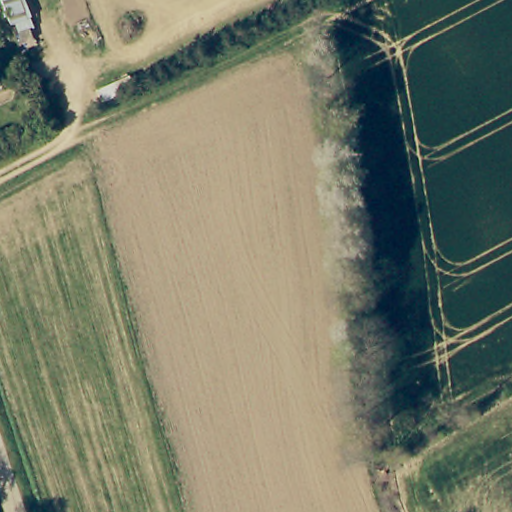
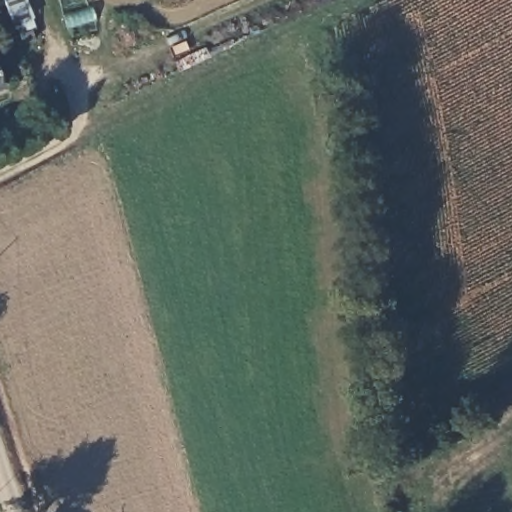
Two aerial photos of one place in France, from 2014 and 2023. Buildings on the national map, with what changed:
unchanged [(34,31),(17,37),(3,0),(22,0),(34,31)]
unchanged [(0,94),(0,81),(4,94),(0,94)]

